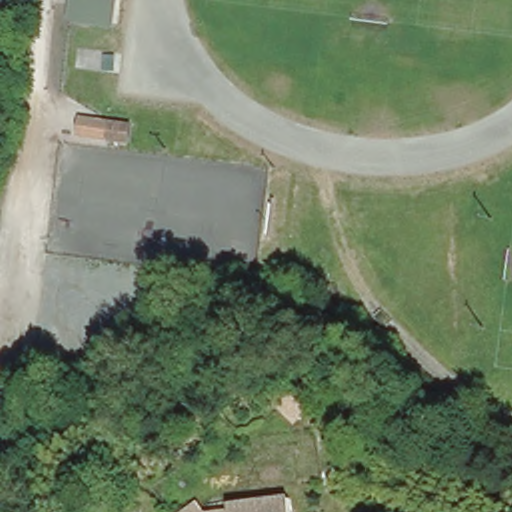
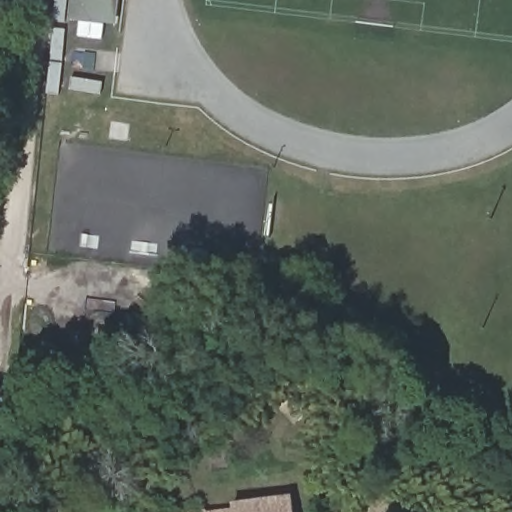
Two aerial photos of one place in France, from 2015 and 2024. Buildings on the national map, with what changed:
unchanged [(116,0),(113,24),(69,17),(71,0),(116,0)]
unchanged [(127,122),(125,140),(106,137),(109,120),(127,122)]
unchanged [(319,281),(320,293),(306,293),(306,281),(319,281)]
unchanged [(295,396),(310,411),(301,421),(285,405),(295,396)]
unchanged [(295,498),(297,512),(236,512),(235,506),(295,498)]

